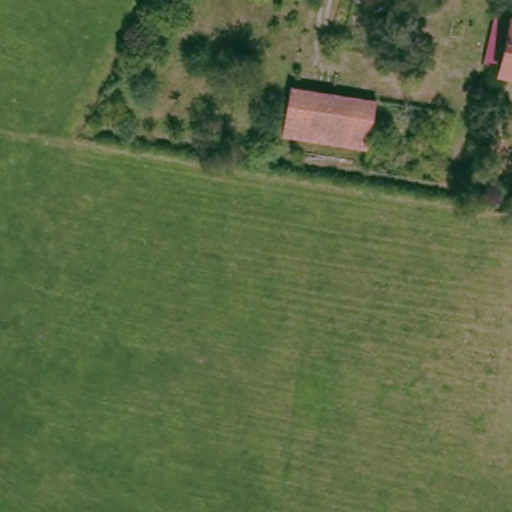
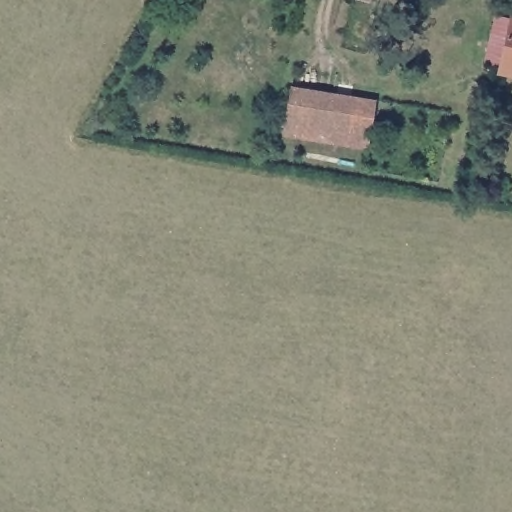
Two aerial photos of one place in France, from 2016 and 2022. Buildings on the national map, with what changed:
unchanged [(512,12),(512,76),(497,72),(512,12)]
unchanged [(291,85),(379,100),(370,151),(283,136),(291,85)]

